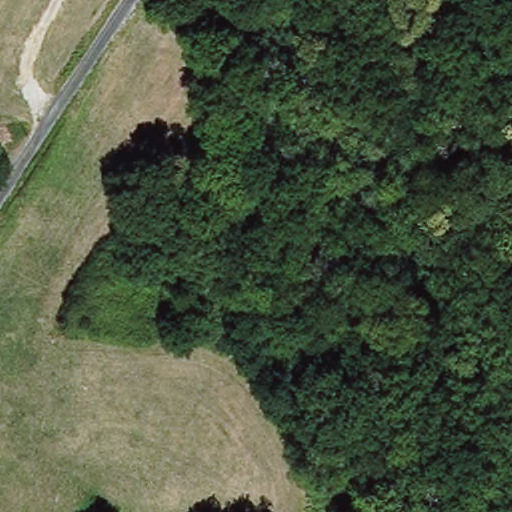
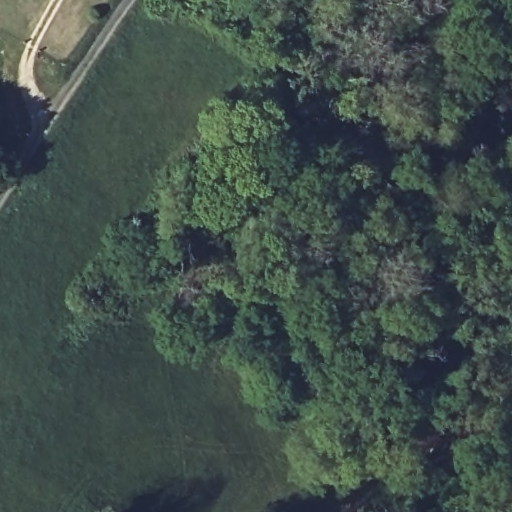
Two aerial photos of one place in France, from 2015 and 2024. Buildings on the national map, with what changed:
[]

